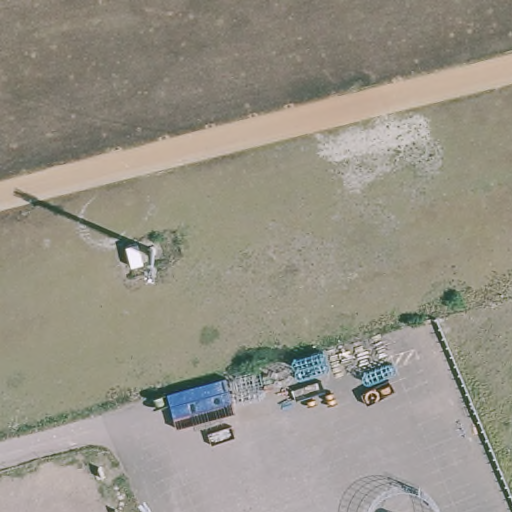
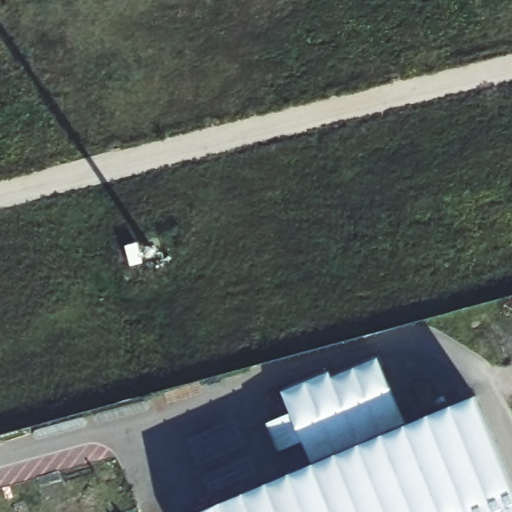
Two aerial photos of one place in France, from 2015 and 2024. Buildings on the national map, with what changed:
new [(317,473),(305,446),(278,457),(268,428),(293,417),(284,395),(332,374),(335,381),(378,362),(410,434),(317,473)]
new [(484,402),(512,470),(512,512),(223,512),(484,402)]

